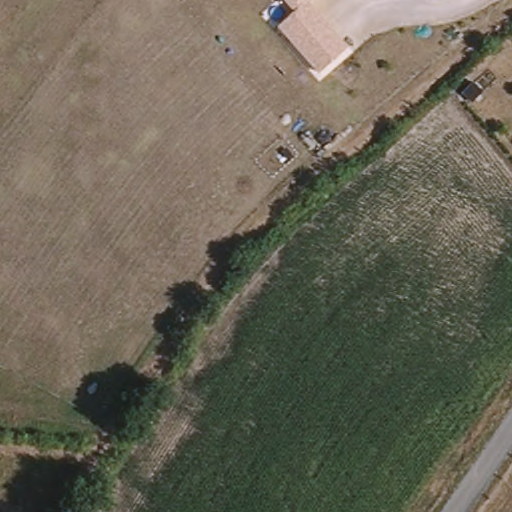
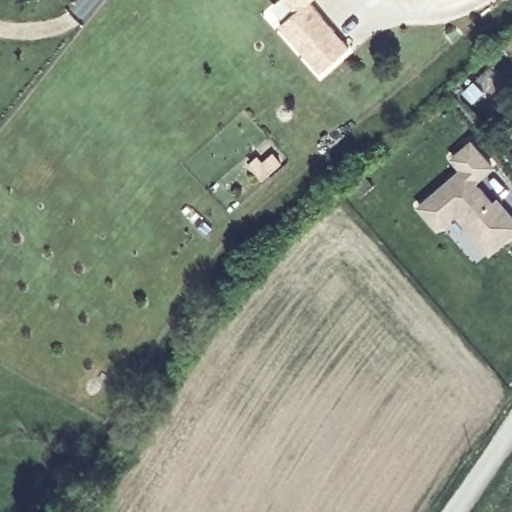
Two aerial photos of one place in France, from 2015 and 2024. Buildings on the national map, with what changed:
unchanged [(327,75),(282,24),(300,9),(309,0),(313,0),(356,50),(327,75)]
unchanged [(309,0),(300,9),(292,0),(309,0)]
new [(452,155),(470,140),(490,164),(473,179),(491,199),(495,196),(512,215),(512,229),(488,250),(454,210),(437,226),(418,205),(462,166),(452,155)]

